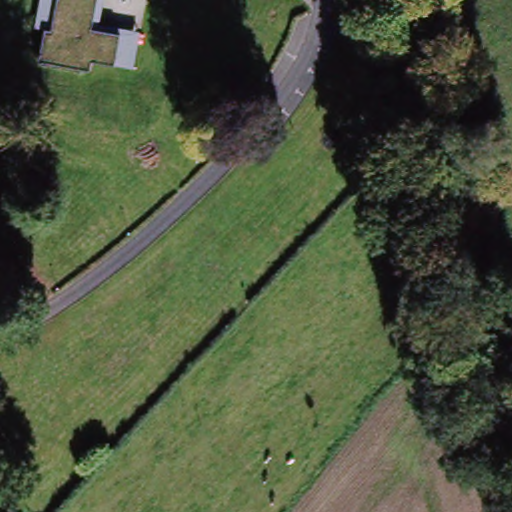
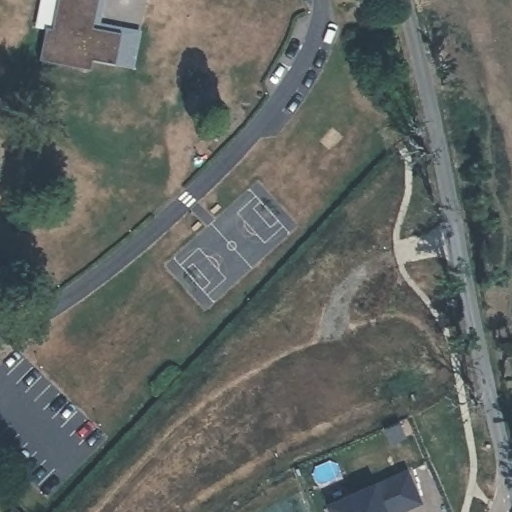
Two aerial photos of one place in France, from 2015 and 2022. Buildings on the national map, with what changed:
unchanged [(141,31),(135,71),(92,63),(89,71),(38,63),(45,33),(35,30),(41,0),(106,0),(100,24),(141,31)]
new [(332,511),(412,476),(426,507),(415,512),(332,512),(332,511)]

